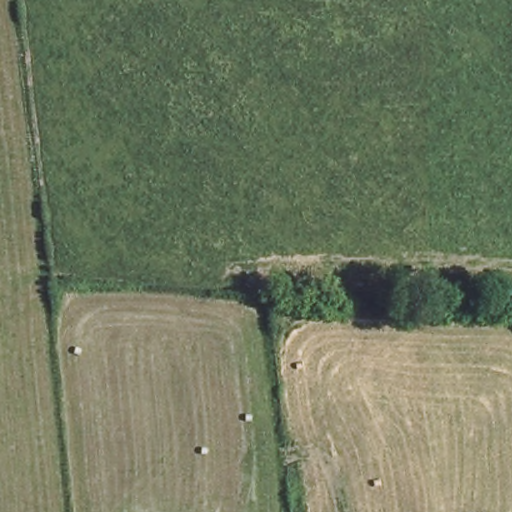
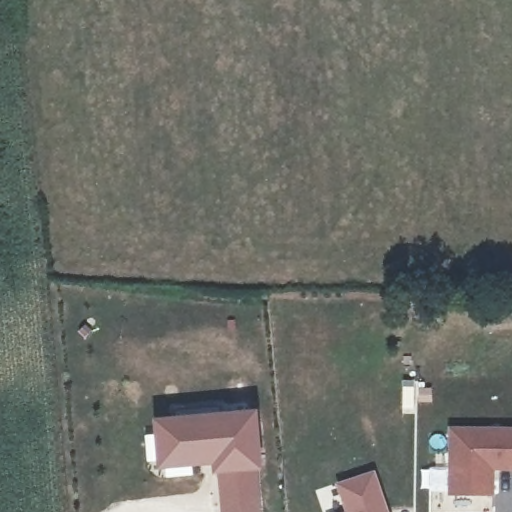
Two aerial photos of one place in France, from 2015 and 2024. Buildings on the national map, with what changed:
new [(158,419),(157,404),(199,400),(200,415),(232,412),(241,512),(208,512),(203,458),(208,458),(207,443),(182,445),(182,452),(147,455),(144,420),(158,419)]
new [(205,415),(200,415),(199,400),(204,400),(205,415)]
new [(512,426),(512,470),(494,470),(494,495),(448,495),(449,427),(512,426)]
new [(336,484),(373,471),(387,512),(344,512),(345,512),(336,484)]

